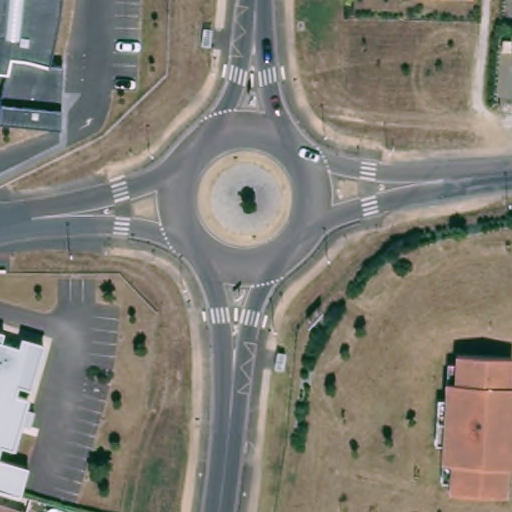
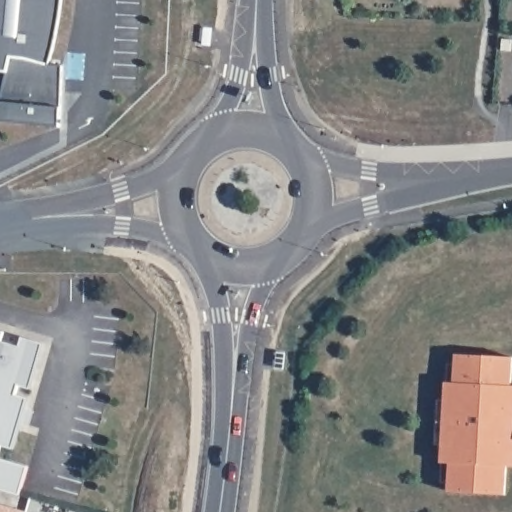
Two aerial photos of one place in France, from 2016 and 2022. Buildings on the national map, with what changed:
unchanged [(62,19),(52,60),(63,61),(62,125),(0,115),(10,72),(0,71),(0,0),(65,0),(62,19)]
unchanged [(2,341),(20,346),(23,337),(44,343),(31,389),(19,385),(17,394),(29,398),(14,449),(2,445),(0,451),(0,330),(5,331),(2,341)]
unchanged [(443,444),(436,444),(438,399),(446,399),(447,382),(447,363),(457,363),(457,354),(512,357),(511,385),(512,386),(512,466),(507,465),(505,494),(450,491),(451,482),(442,481),(442,462),(443,444)]
unchanged [(21,494),(9,491),(0,489),(0,458),(29,466),(21,494)]
unchanged [(0,512),(0,504),(28,512),(0,512)]

